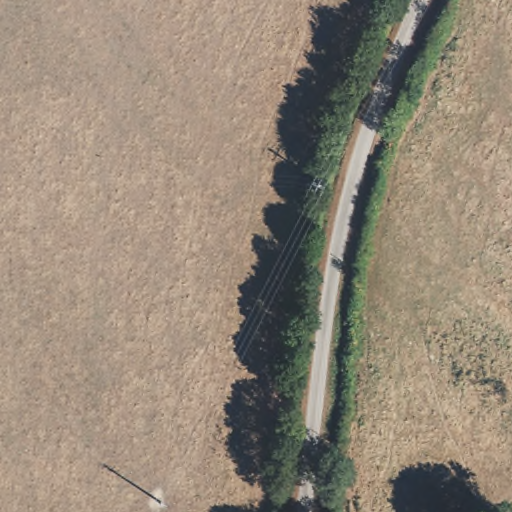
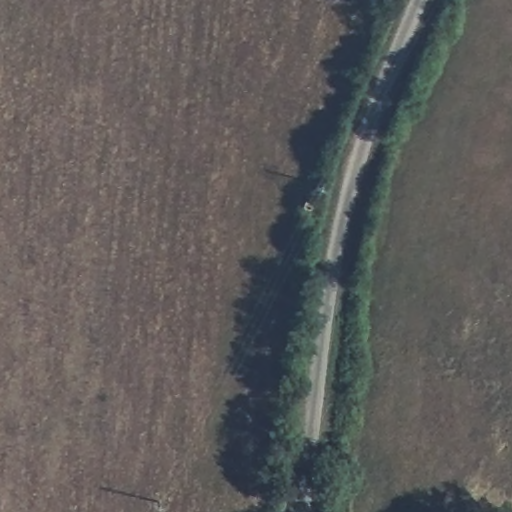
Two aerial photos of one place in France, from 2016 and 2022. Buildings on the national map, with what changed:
unchanged [(324,205),(323,212),(305,207),(306,200),(324,205)]

